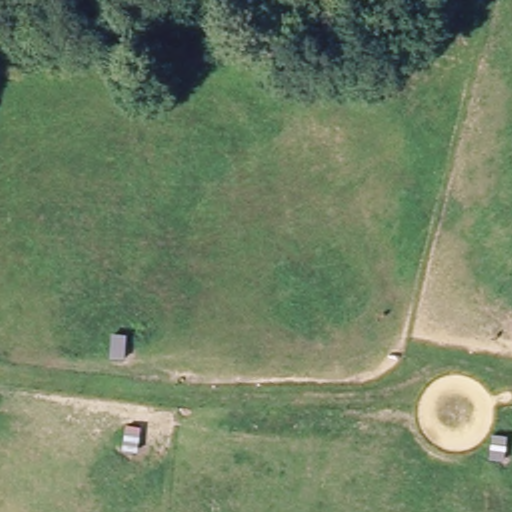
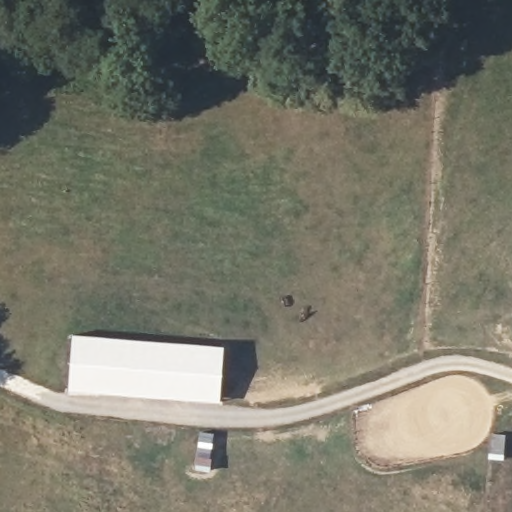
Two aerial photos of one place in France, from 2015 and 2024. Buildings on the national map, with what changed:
new [(71,334),(224,347),(221,404),(117,396),(67,394),(71,334)]
new [(199,432),(214,434),(210,471),(194,469),(199,432)]

